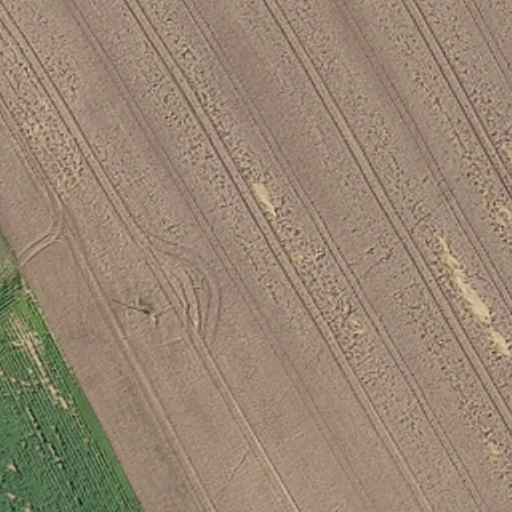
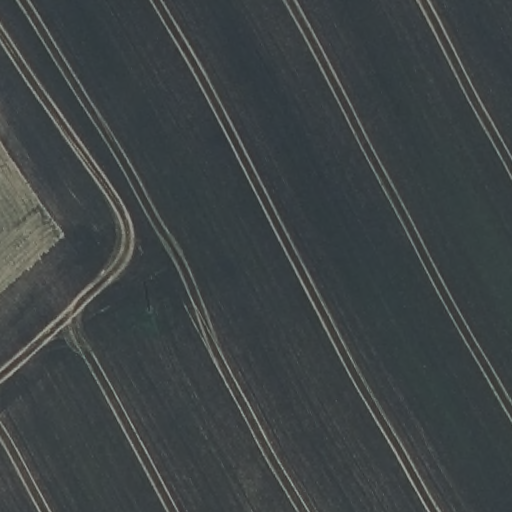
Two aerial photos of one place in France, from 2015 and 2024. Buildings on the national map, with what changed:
[]

